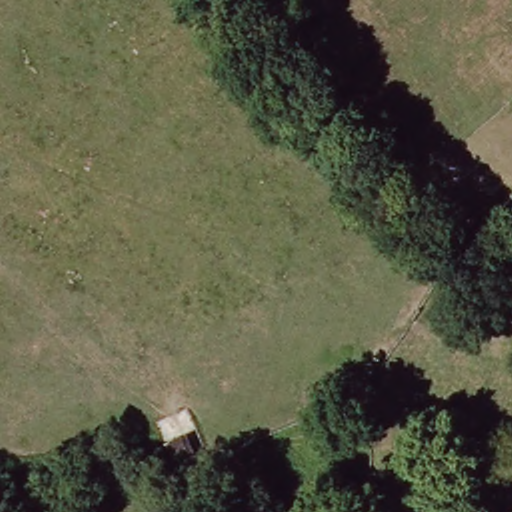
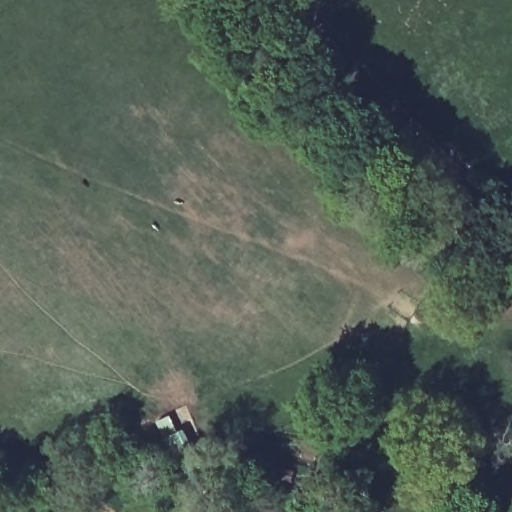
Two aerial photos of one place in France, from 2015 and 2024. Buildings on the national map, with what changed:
unchanged [(438,194),(449,184),(470,204),(459,214),(438,194)]
unchanged [(167,493),(165,478),(165,464),(182,463),(182,479),(184,491),(167,493)]

